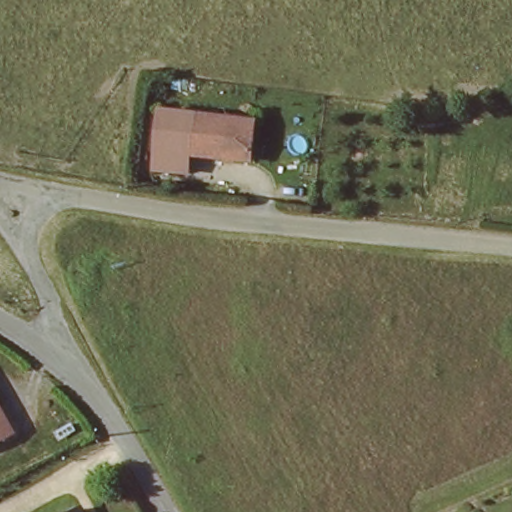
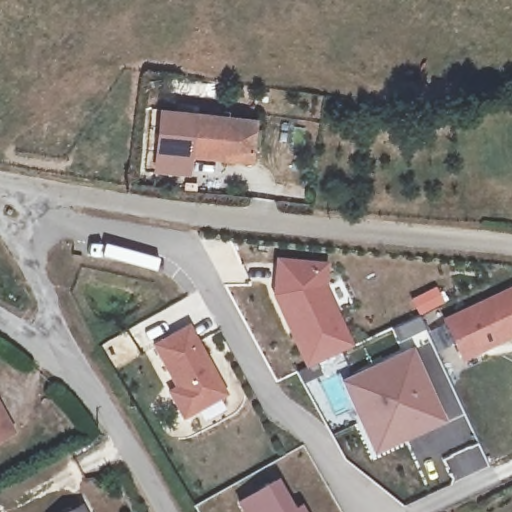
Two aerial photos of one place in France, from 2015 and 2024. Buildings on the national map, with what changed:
unchanged [(188,175),(159,171),(163,130),(165,114),(189,116),(184,155),(190,156),(188,175)]
unchanged [(256,124),(252,163),(190,156),(184,155),(189,116),(256,124)]
new [(323,262),(323,287),(348,343),(302,367),(268,293),(271,260),(323,262)]
new [(512,281),(512,282),(512,335),(456,358),(437,315),(512,281)]
new [(188,324),(225,392),(181,418),(166,390),(172,386),(150,344),(188,324)]
new [(407,346),(441,417),(368,451),(335,377),(407,346)]
unchanged [(0,440),(0,406),(14,432),(0,440)]
new [(274,477),(292,508),(299,505),(303,512),(241,512),(234,498),(274,477)]
unchanged [(77,508),(79,512),(70,512),(77,508)]

